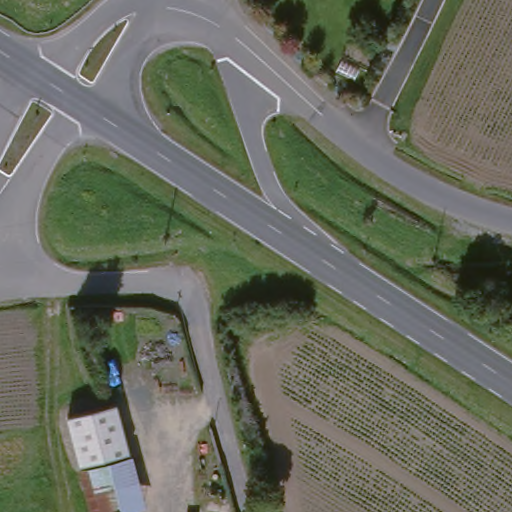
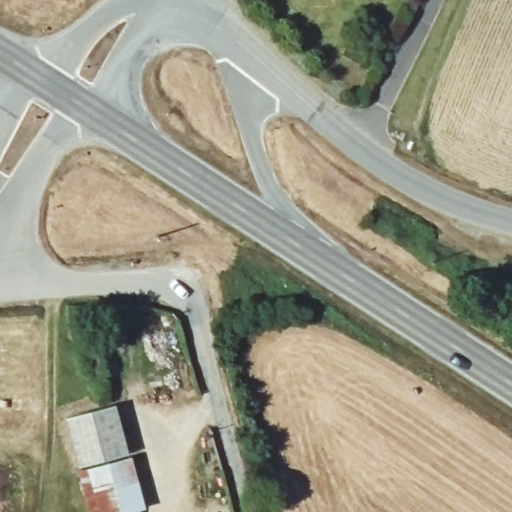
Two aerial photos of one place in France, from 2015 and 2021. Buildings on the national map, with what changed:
unchanged [(148,505),(122,512),(97,512),(72,425),(125,414),(135,456),(148,505)]

